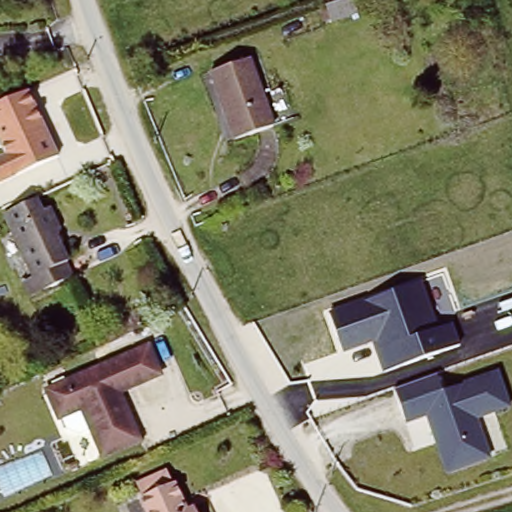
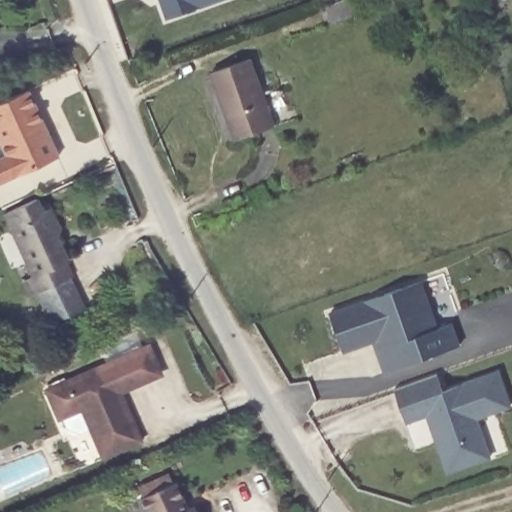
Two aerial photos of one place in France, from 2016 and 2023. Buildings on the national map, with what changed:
new [(159,0),(219,0),(166,19),(159,0)]
unchanged [(328,9),(327,2),(331,0),(354,0),(360,15),(334,24),(328,9)]
unchanged [(245,57),(270,126),(233,140),(208,71),(245,57)]
unchanged [(37,129),(40,136),(43,137),(52,157),(0,181),(0,101),(22,91),(38,126),(37,129)]
unchanged [(37,277),(8,216),(40,201),(46,212),(52,209),(62,231),(57,234),(72,262),(68,263),(76,279),(35,299),(27,282),(37,277)]
unchanged [(435,327),(449,323),(457,346),(381,373),(371,343),(341,355),(327,315),(418,282),(435,327)]
unchanged [(155,376),(114,394),(117,400),(113,402),(115,407),(119,406),(135,442),(98,457),(86,431),(75,435),(62,431),(57,419),(54,421),(42,393),(143,349),(155,376)]
unchanged [(442,392),(456,387),(497,373),(504,392),(509,407),(475,418),(488,457),(446,472),(436,442),(440,442),(436,431),(432,432),(427,416),(405,423),(394,390),(436,376),(442,392)]
unchanged [(143,494),(179,479),(190,507),(199,503),(203,512),(151,512),(143,494)]

